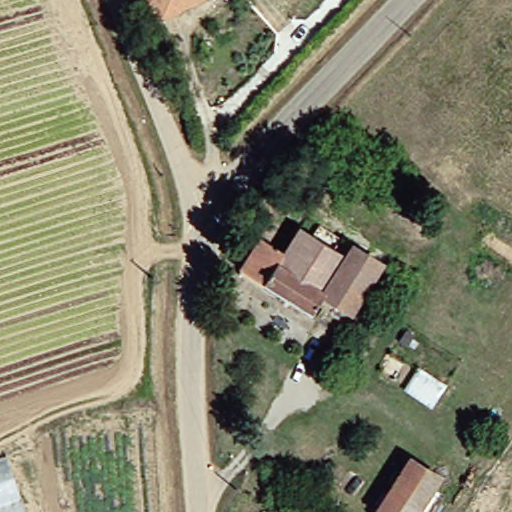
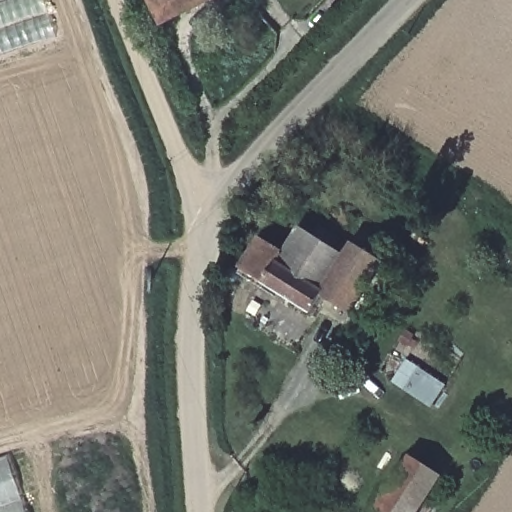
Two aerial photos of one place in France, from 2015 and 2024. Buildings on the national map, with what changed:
new [(57,35),(0,55),(0,0),(45,0),(57,35)]
unchanged [(151,15),(145,0),(186,0),(151,15)]
unchanged [(342,310),(315,293),(302,312),(255,283),(257,279),(234,264),(252,236),(275,250),(292,224),(330,248),(337,239),(376,260),(342,310)]
unchanged [(0,512),(0,454),(5,452),(26,512),(0,512)]
unchanged [(403,457),(431,475),(407,512),(384,512),(371,504),(403,457)]

